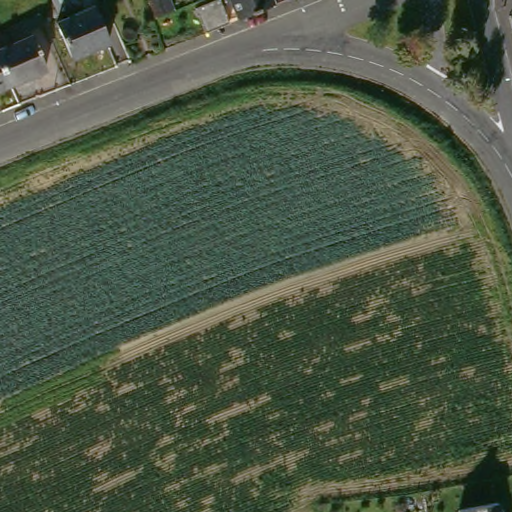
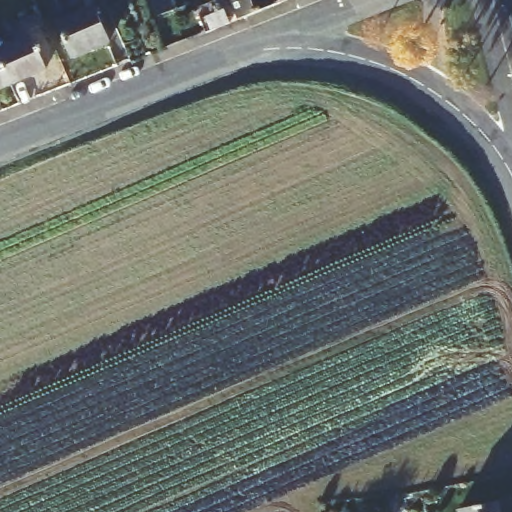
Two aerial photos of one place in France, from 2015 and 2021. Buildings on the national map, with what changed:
unchanged [(163,24),(153,0),(174,0),(182,16),(163,24)]
unchanged [(225,29),(215,7),(231,0),(238,0),(247,20),(225,29)]
unchanged [(295,0),(295,1),(255,17),(248,0),(295,0)]
unchanged [(84,60),(69,30),(99,15),(114,46),(84,60)]
unchanged [(0,91),(0,49),(36,35),(52,69),(0,91)]
unchanged [(460,510),(499,504),(500,512),(460,512),(460,510)]

